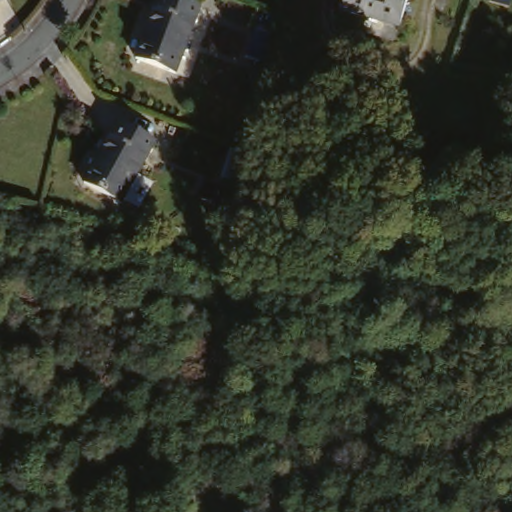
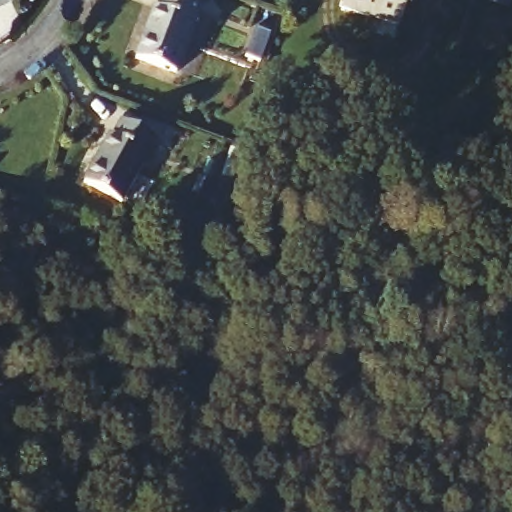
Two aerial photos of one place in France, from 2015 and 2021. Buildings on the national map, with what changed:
unchanged [(139,59),(136,56),(152,13),(156,11),(160,0),(180,0),(199,8),(176,73),(139,59)]
unchanged [(345,0),(407,0),(402,24),(342,15),(345,0)]
unchanged [(263,65),(249,60),(260,32),(274,37),(263,65)]
unchanged [(86,186),(111,143),(114,144),(124,128),(158,149),(123,208),(86,186)]

